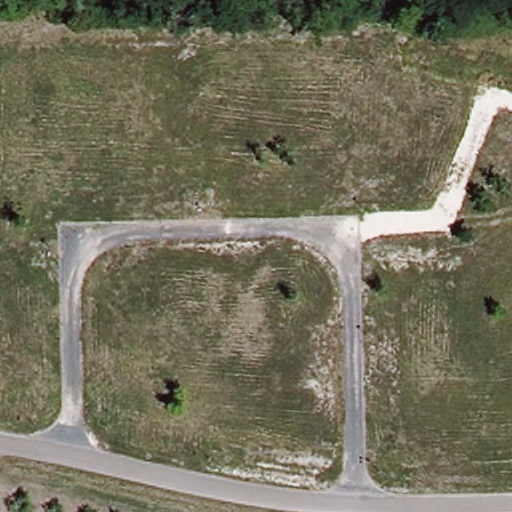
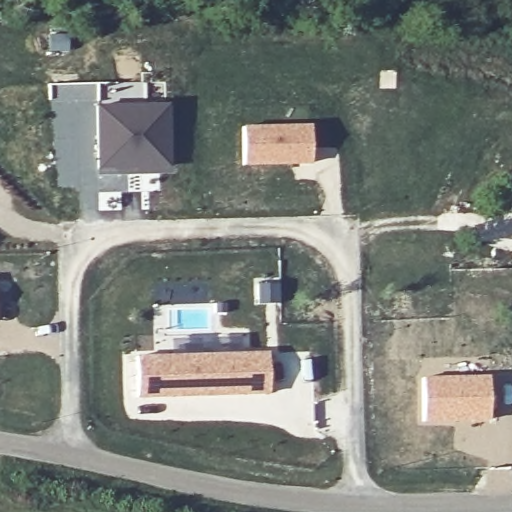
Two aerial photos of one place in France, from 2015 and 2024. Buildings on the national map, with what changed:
new [(97,169),(94,107),(168,104),(169,167),(97,169)]
new [(308,126),(309,162),(244,165),(242,129),(308,126)]
new [(279,279),(280,304),(255,305),(254,280),(279,279)]
new [(268,351),(269,392),(137,397),(135,353),(268,351)]
new [(489,374),(489,420),(424,422),(424,376),(489,374)]

